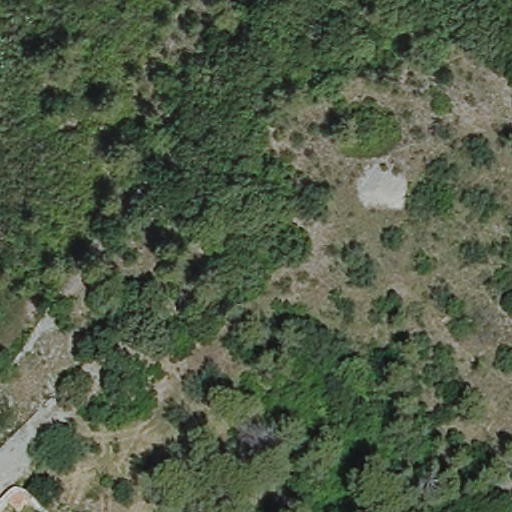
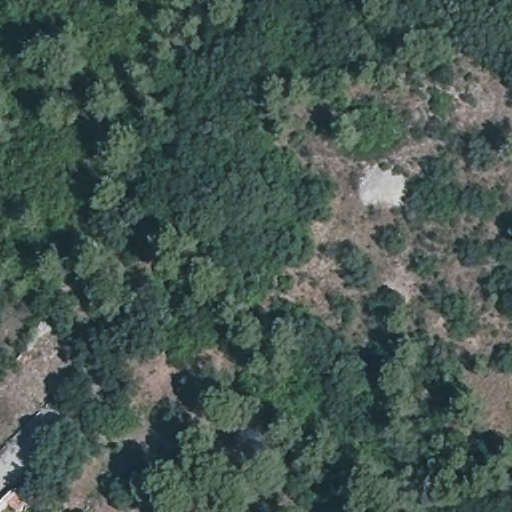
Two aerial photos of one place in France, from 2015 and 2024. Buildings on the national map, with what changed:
unchanged [(21,512),(16,512),(3,499),(13,490),(17,488),(28,492),(31,495),(34,498),(21,512)]

